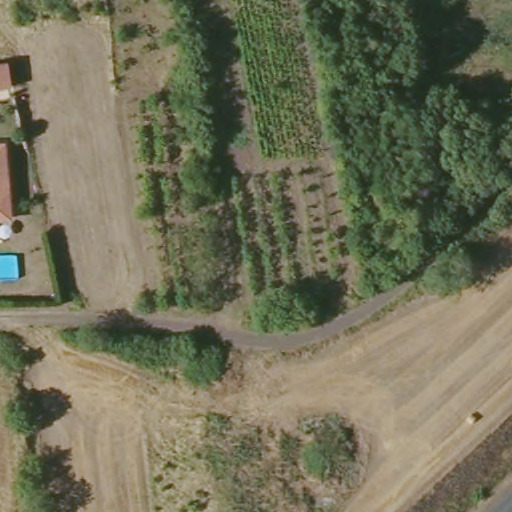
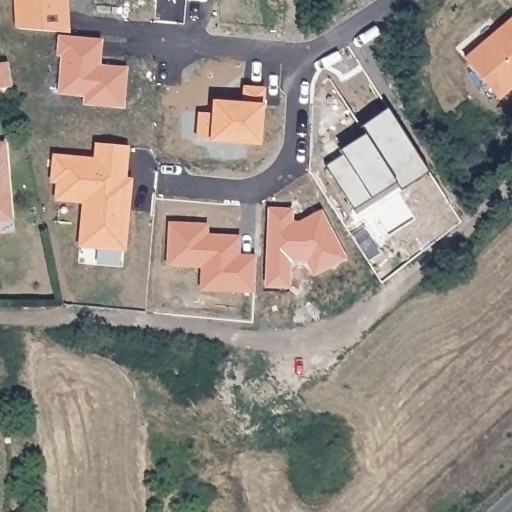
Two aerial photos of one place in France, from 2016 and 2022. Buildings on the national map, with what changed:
new [(69,30),(17,27),(15,0),(67,0),(69,30)]
new [(502,106),(467,67),(512,28),(512,97),(502,106)]
new [(60,36),(101,39),(100,57),(95,56),(94,64),(127,67),(124,105),(85,102),(86,94),(60,92),(63,53),(59,53),(60,36)]
new [(7,85),(0,86),(0,61),(3,61),(7,85)]
new [(202,111),(217,112),(217,104),(231,105),(231,101),(247,103),(247,86),(267,88),(262,142),(201,138),(202,111)]
new [(362,150),(374,142),(366,130),(363,125),(391,106),(395,112),(435,175),(407,193),(402,186),(360,212),(329,165),(359,145),(362,150)]
new [(83,227),(85,202),(57,200),(59,182),(53,182),(55,156),(97,160),(98,145),(129,147),(126,180),(132,186),(130,204),(129,211),(125,250),(96,247),(81,246),(83,227)]
unchanged [(11,221),(0,222),(0,146),(5,146),(11,221)]
new [(205,265),(171,263),(172,223),(209,224),(209,234),(241,235),(240,254),(259,255),(257,290),(237,289),(205,288),(205,278),(205,265)]

